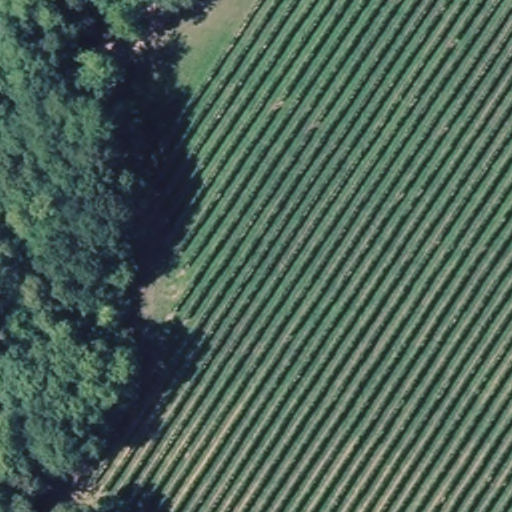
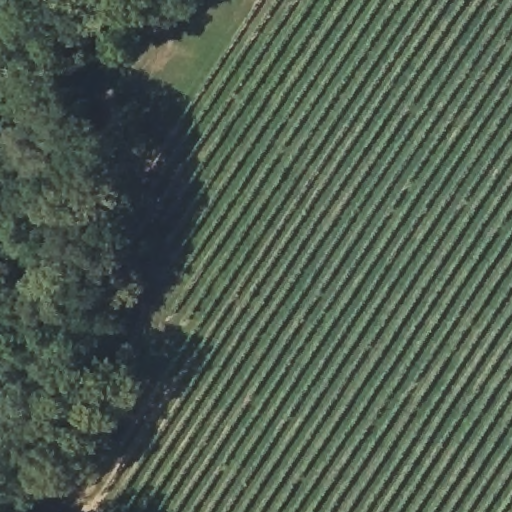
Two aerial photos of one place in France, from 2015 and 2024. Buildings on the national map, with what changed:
[]

